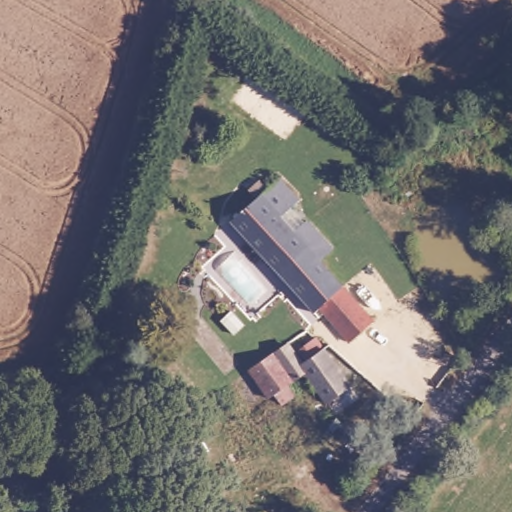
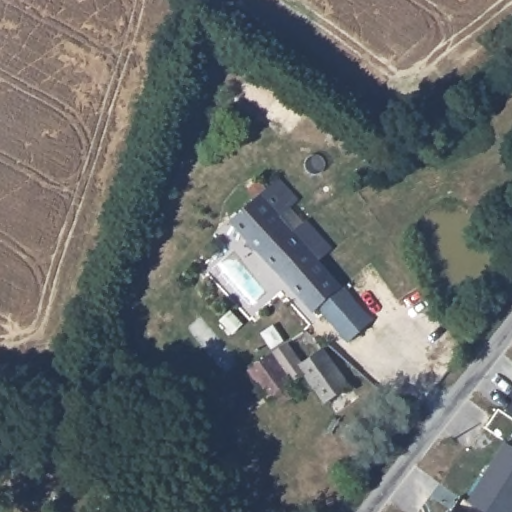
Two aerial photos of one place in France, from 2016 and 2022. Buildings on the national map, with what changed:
unchanged [(313,312),(224,223),(280,174),(300,195),(283,214),(293,225),(308,210),(337,247),(327,256),(375,324),(350,347),(313,312)]
unchanged [(312,331),(350,381),(330,398),(291,347),(312,331)]
unchanged [(104,384),(91,394),(66,378),(80,363),(111,338),(132,363),(107,380),(104,384)]
unchanged [(281,381),(289,391),(273,403),(245,367),(265,351),(286,377),(281,381)]
new [(486,512),(467,500),(505,442),(512,447),(512,512),(486,512)]
new [(454,512),(447,512),(449,509),(454,512)]

